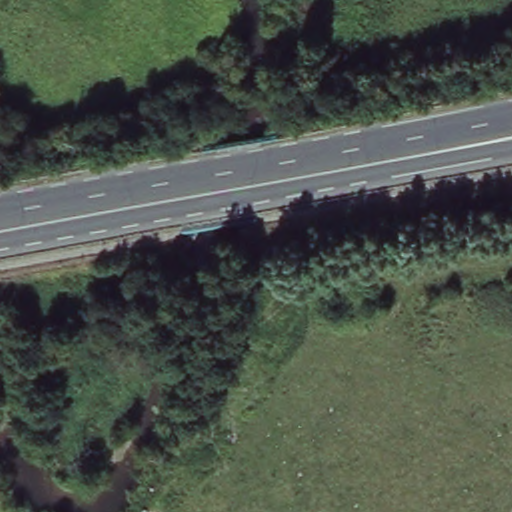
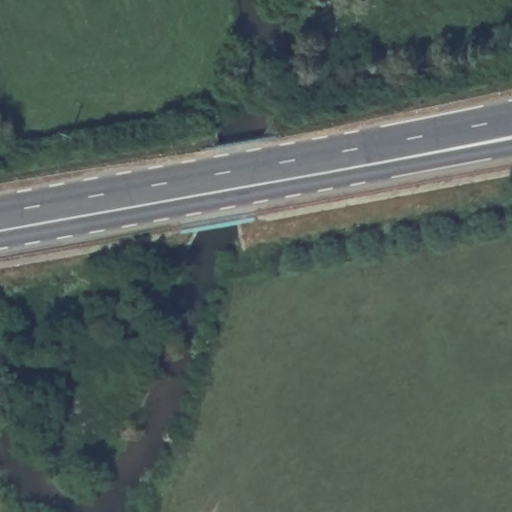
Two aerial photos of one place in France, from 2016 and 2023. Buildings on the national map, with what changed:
[]

